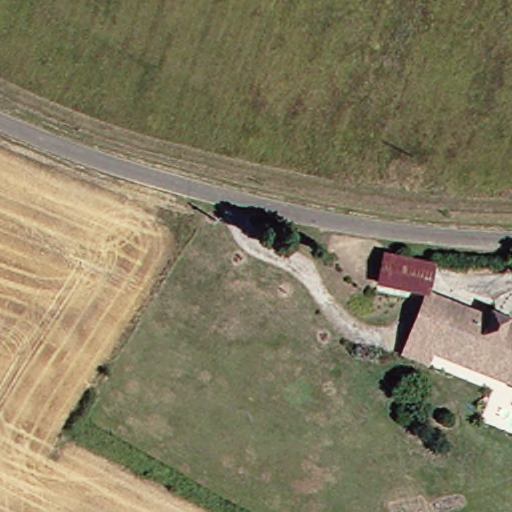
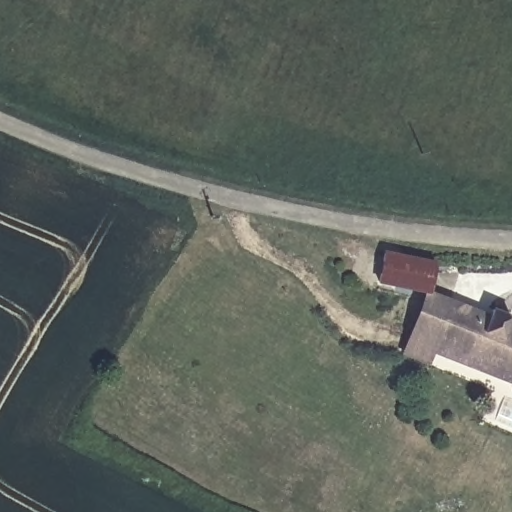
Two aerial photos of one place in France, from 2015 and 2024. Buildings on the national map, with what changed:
unchanged [(425,262),(419,292),(411,290),(368,282),(375,253),(425,262)]
unchanged [(422,350),(417,363),(395,355),(419,292),(442,300),(422,350)]
unchanged [(510,385),(422,350),(442,300),(481,316),(483,310),(502,317),(499,323),(512,328),(512,390),(508,389),(510,385)]

